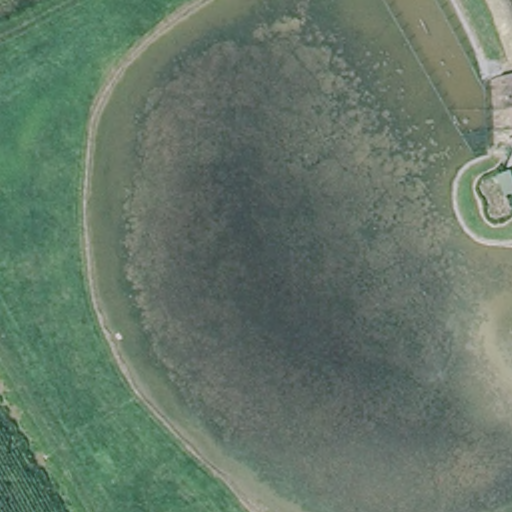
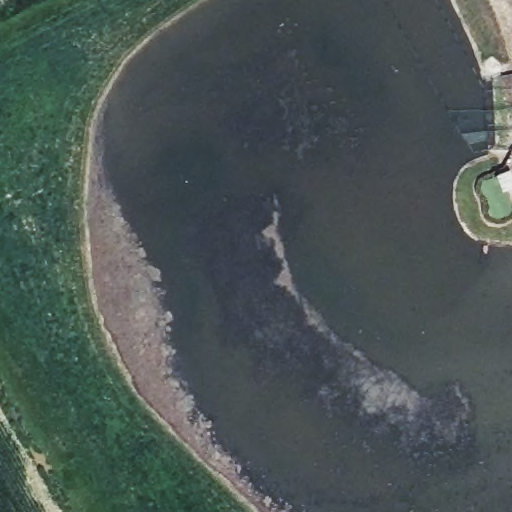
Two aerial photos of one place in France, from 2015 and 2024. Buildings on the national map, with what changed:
unchanged [(512,177),(510,210),(484,209),(485,176),(512,170),(512,177)]

